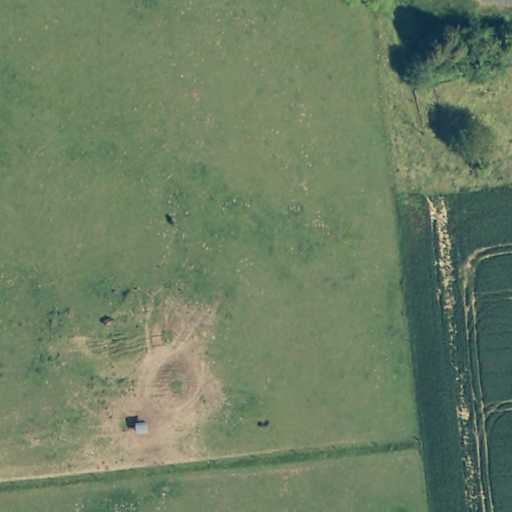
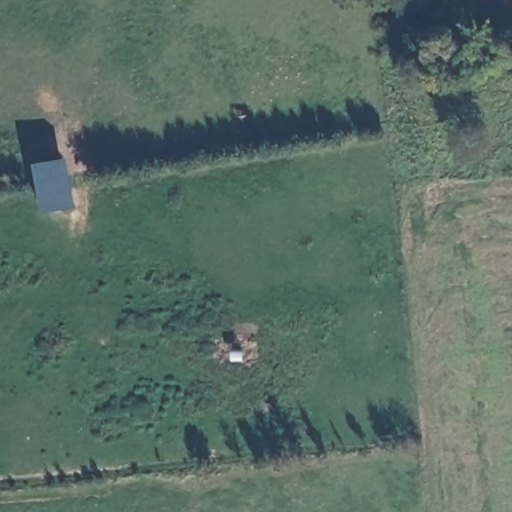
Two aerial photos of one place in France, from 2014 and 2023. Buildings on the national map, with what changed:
new [(36,163),(68,158),(77,207),(45,214),(36,163)]

